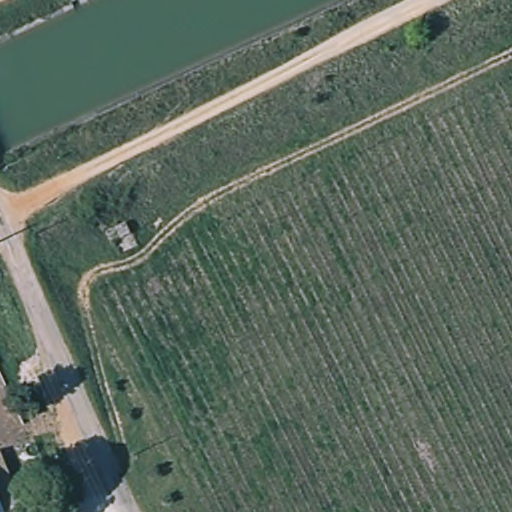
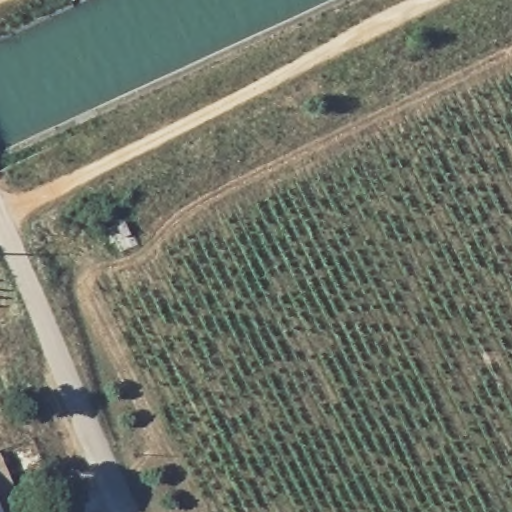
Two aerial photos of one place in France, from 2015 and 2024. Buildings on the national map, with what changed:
unchanged [(0,512),(0,504),(3,512),(0,512)]

